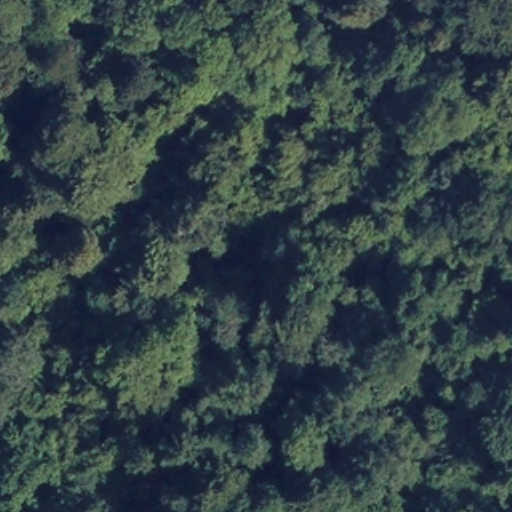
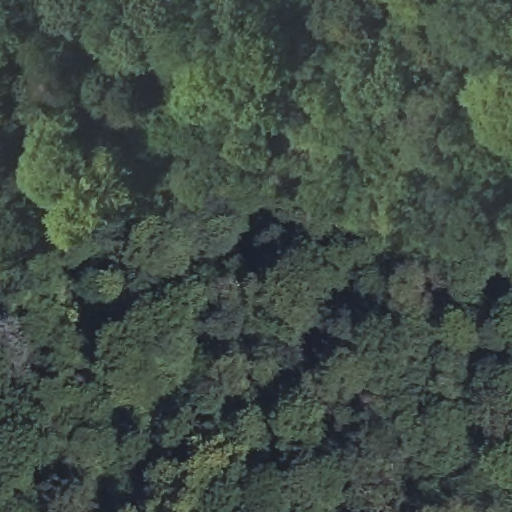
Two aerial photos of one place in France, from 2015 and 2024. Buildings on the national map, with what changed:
unchanged [(43,492),(56,512),(22,512),(18,507),(43,492)]

